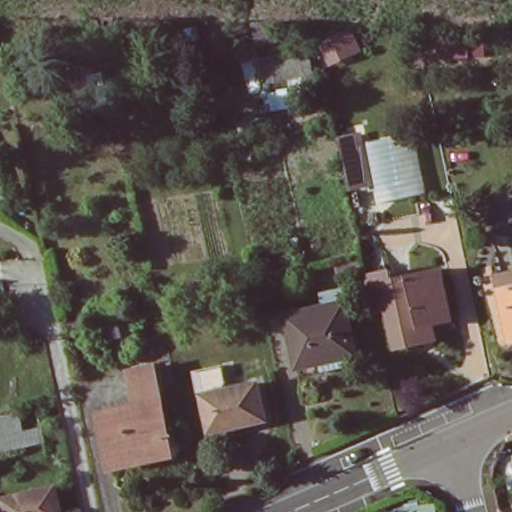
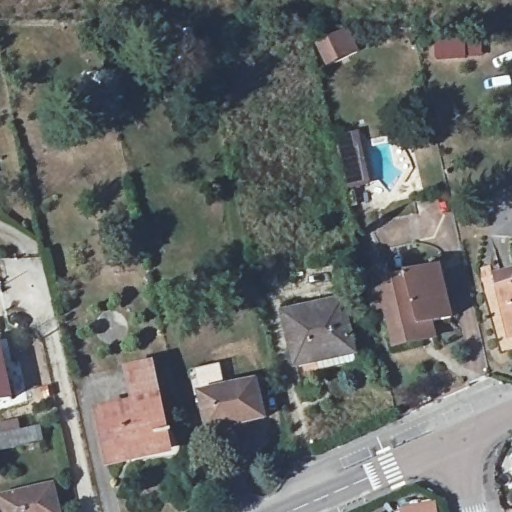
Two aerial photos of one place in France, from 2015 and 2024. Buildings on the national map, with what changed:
unchanged [(257,65),(280,62),(279,54),(299,51),(300,62),(309,60),(312,76),(302,79),(302,76),(268,81),(267,76),(259,77),(257,65)]
unchanged [(338,139),(358,134),(369,184),(349,189),(338,139)]
unchanged [(378,201),(369,146),(416,141),(426,195),(378,201)]
unchanged [(342,291),(335,263),(353,260),(358,258),(365,286),(359,287),(342,291)]
unchanged [(401,350),(398,335),(386,285),(436,273),(447,324),(428,328),(432,343),(401,350)]
unchanged [(512,340),(500,290),(497,276),(512,273),(512,339),(512,340)]
unchanged [(319,362),(297,367),(286,315),(344,302),(354,347),(356,355),(319,362)]
new [(15,400),(0,403),(0,339),(1,339),(15,400)]
unchanged [(94,413),(131,405),(123,370),(125,367),(145,363),(148,365),(163,434),(169,432),(176,448),(176,452),(175,455),(173,457),(171,458),(169,460),(136,462),(135,457),(105,463),(94,413)]
unchanged [(202,400),(196,402),(191,377),(220,370),(226,395),(257,388),(265,425),(210,437),(202,400)]
unchanged [(0,452),(0,438),(2,437),(0,429),(0,426),(14,423),(18,422),(21,433),(41,428),(44,442),(0,452)]
unchanged [(54,487),(59,512),(4,512),(2,500),(54,487)]

